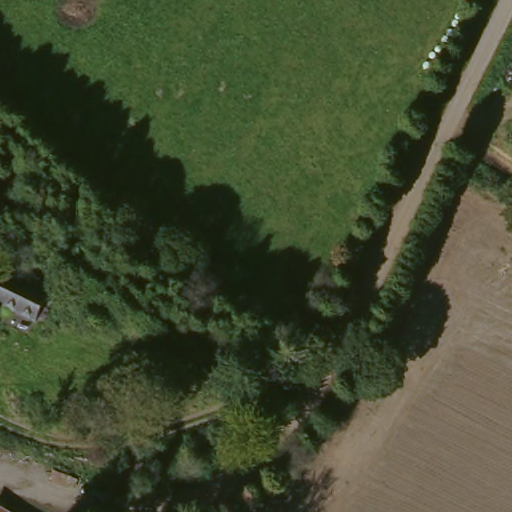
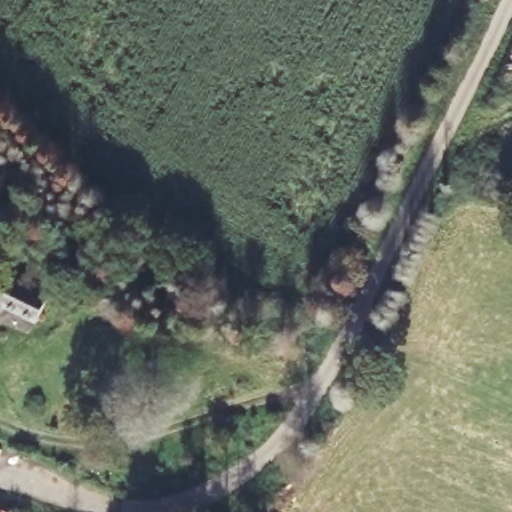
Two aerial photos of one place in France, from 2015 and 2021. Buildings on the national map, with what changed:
unchanged [(49,303),(35,326),(8,309),(0,320),(0,270),(49,303)]
unchanged [(5,512),(0,512),(0,509),(5,512)]

